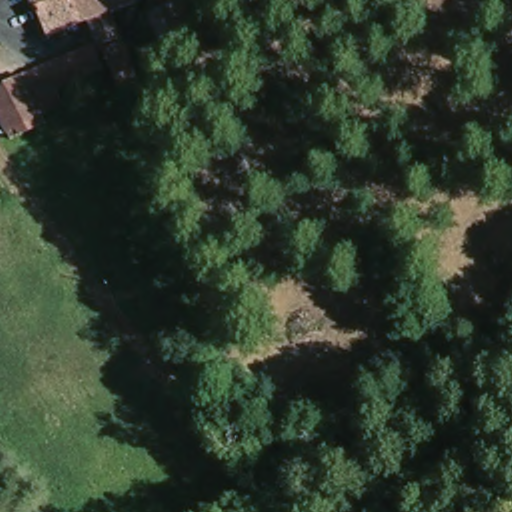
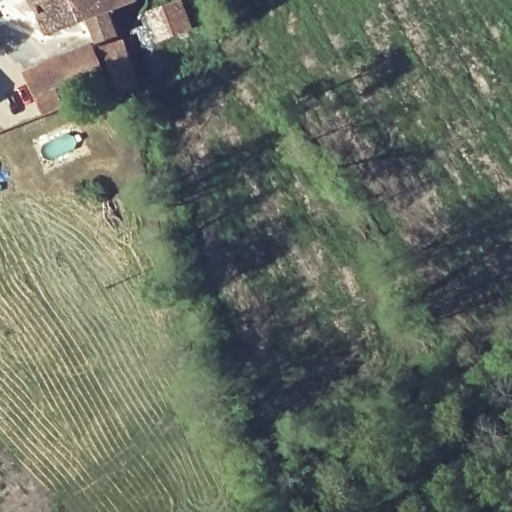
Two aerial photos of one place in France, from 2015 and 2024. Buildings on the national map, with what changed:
unchanged [(134,80),(120,87),(99,42),(89,16),(46,32),(35,4),(34,0),(138,0),(105,15),(115,36),(120,35),(140,79),(134,80)]
unchanged [(180,25),(151,35),(143,13),(172,0),(180,25)]
unchanged [(25,71),(91,42),(101,67),(56,89),(62,102),(42,111),(27,77),(25,71)]
unchanged [(0,117),(0,90),(27,77),(42,111),(5,129),(0,117)]

